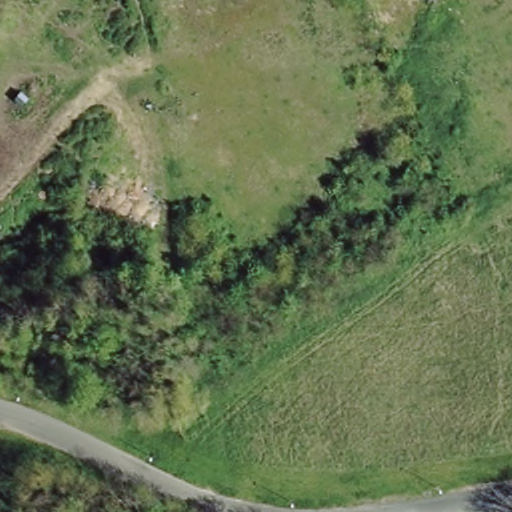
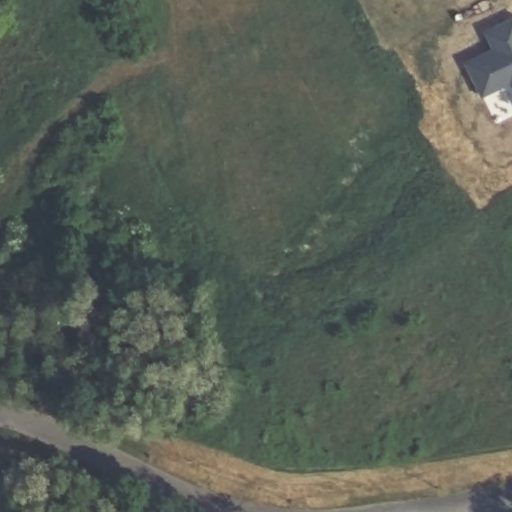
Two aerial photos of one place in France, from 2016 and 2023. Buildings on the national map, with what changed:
new [(512,19),(512,84),(511,82),(483,96),(467,62),(495,48),(486,31),(512,19)]

